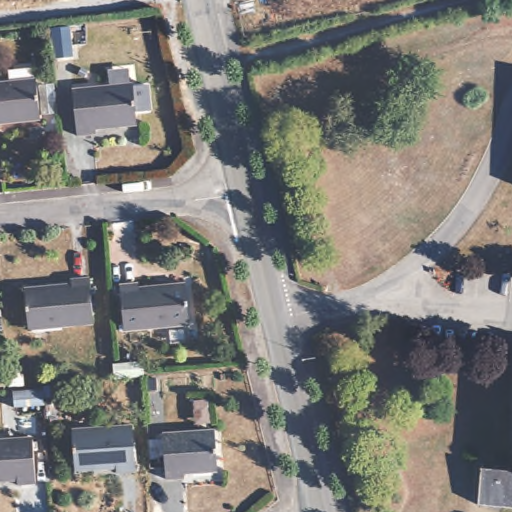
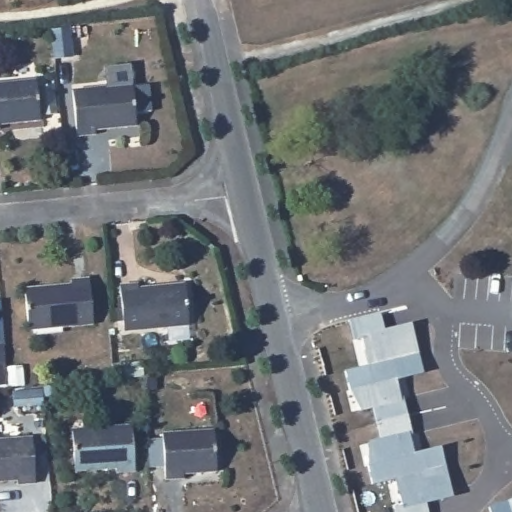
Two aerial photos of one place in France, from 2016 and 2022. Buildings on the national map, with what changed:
unchanged [(107,82),(127,80),(128,95),(131,95),(135,135),(94,140),(95,144),(77,146),(72,101),(109,97),(107,82)]
unchanged [(35,89),(40,130),(0,134),(0,93),(35,89)]
unchanged [(76,290),(75,285),(93,283),(98,329),(33,335),(30,294),(76,290)]
unchanged [(185,290),(188,330),(123,336),(120,290),(137,288),(138,293),(185,290)]
new [(393,507),(400,504),(394,480),(372,486),(366,467),(368,441),(378,438),(372,409),(361,412),(348,389),(344,371),(365,365),(360,340),(353,341),(349,321),(379,313),(384,330),(409,322),(422,375),(395,380),(411,452),(439,447),(452,497),(426,503),(428,512),(395,512),(393,507)]
unchanged [(42,386),(44,403),(15,405),(13,388),(42,386)]
unchanged [(131,431),(134,475),(117,477),(116,472),(74,476),(72,435),(131,431)]
unchanged [(213,436),(216,476),(182,478),(182,483),(164,484),(162,438),(213,436)]
unchanged [(32,442),(35,488),(18,490),(17,485),(0,486),(0,444),(32,442)]
demolished [(483,472),(512,474),(512,512),(479,508),(483,472)]
new [(486,507),(512,499),(512,512),(488,512),(486,507)]

